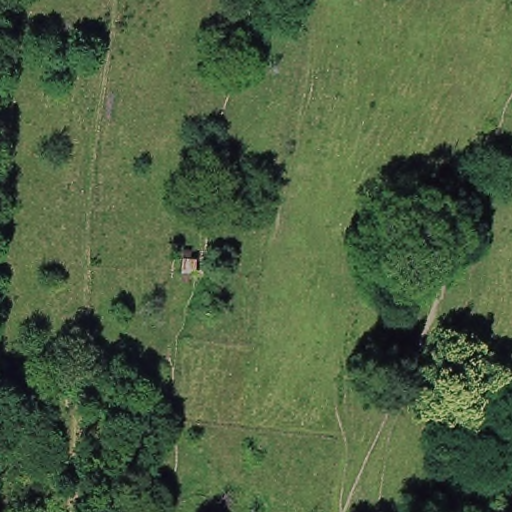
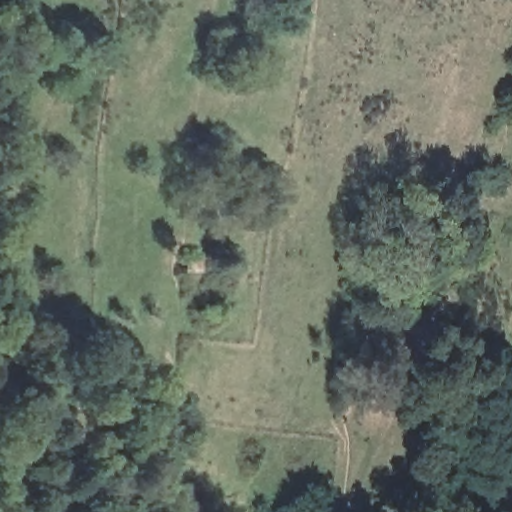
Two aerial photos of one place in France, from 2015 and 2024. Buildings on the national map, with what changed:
[]

